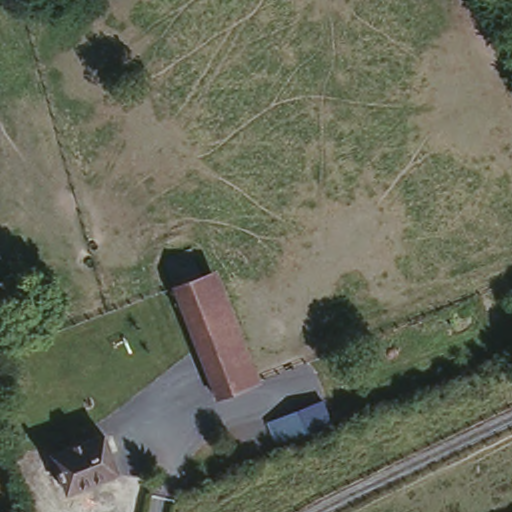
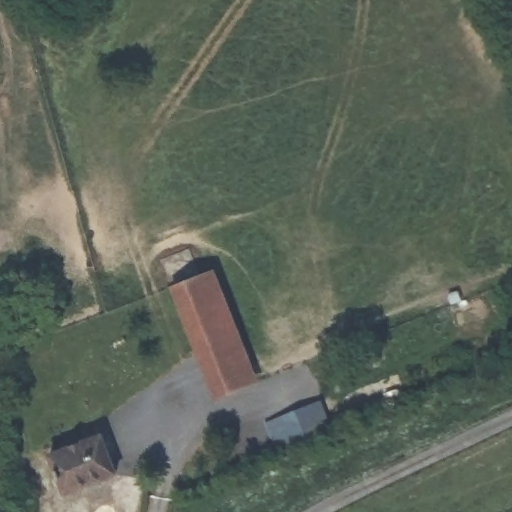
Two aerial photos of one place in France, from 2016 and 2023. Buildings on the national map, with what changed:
unchanged [(212,268),(260,378),(219,396),(173,285),(212,268)]
unchanged [(262,425),(317,403),(330,431),(274,453),(262,425)]
unchanged [(104,434),(117,471),(69,491),(53,453),(104,434)]

